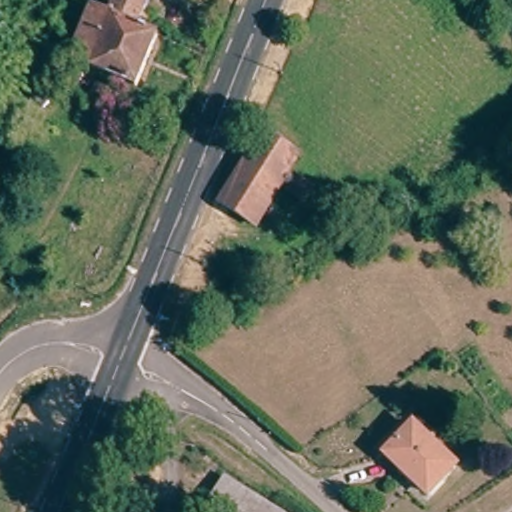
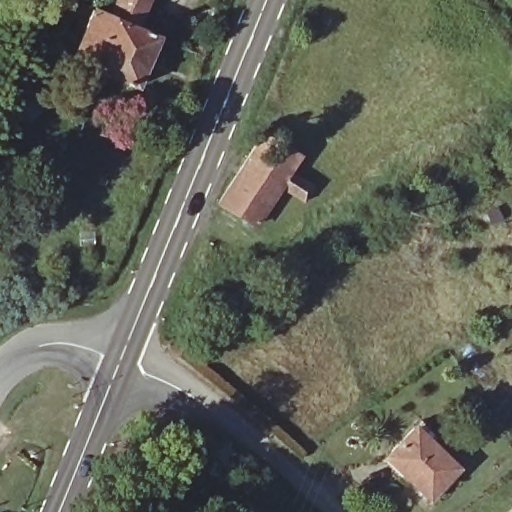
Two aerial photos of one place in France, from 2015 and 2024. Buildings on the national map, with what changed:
unchanged [(115,15),(99,11),(104,0),(108,0),(116,2),(117,0),(146,0),(136,24),(156,32),(135,83),(95,67),(115,15)]
unchanged [(80,48),(90,52),(87,63),(76,58),(80,48)]
unchanged [(297,150),(290,169),(307,180),(298,199),(279,186),(273,182),(234,162),(252,125),(297,150)]
unchanged [(273,182),(279,186),(256,224),(214,203),(234,162),(273,182)]
unchanged [(457,472),(423,497),(384,451),(419,426),(457,472)]
unchanged [(221,471),(283,512),(204,512),(221,471)]

